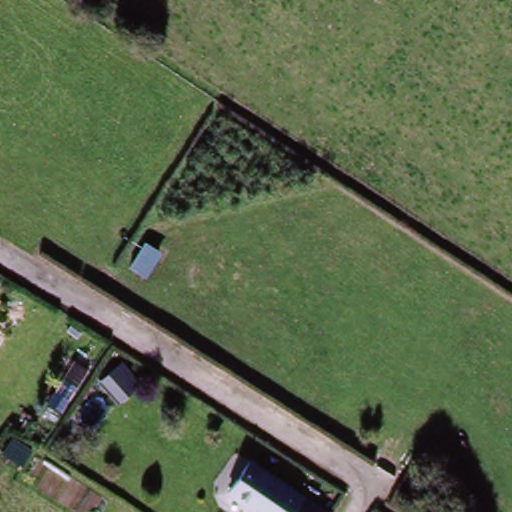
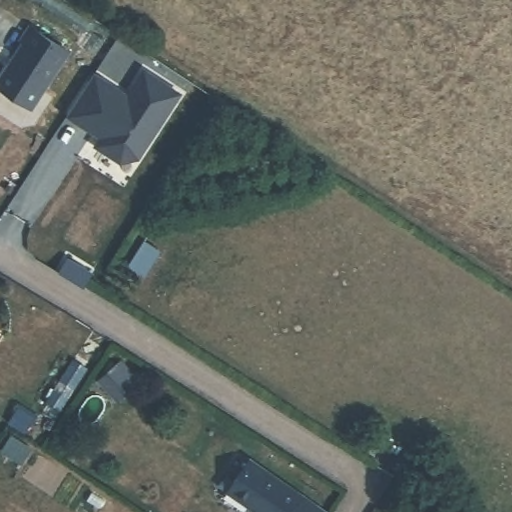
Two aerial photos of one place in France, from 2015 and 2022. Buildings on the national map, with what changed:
new [(71,52),(32,109),(0,89),(0,74),(21,43),(18,41),(29,24),(71,52)]
new [(127,93),(143,69),(182,93),(138,158),(119,163),(93,145),(98,138),(66,116),(94,75),(127,93)]
unchanged [(100,376),(118,362),(123,358),(143,384),(137,388),(135,385),(117,399),(100,376)]
unchanged [(20,467),(0,456),(0,455),(11,439),(32,450),(20,467)]
unchanged [(326,512),(256,512),(229,493),(252,461),(326,512)]

